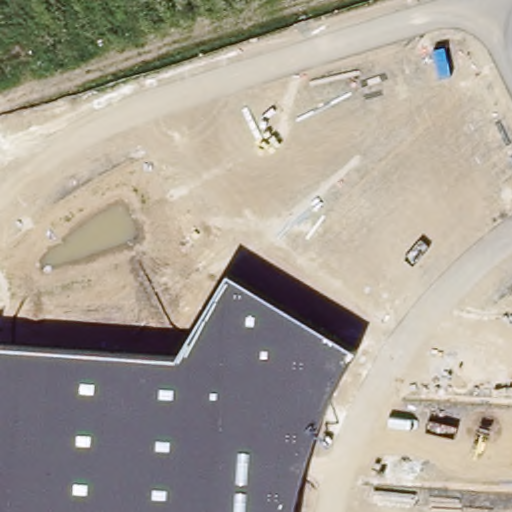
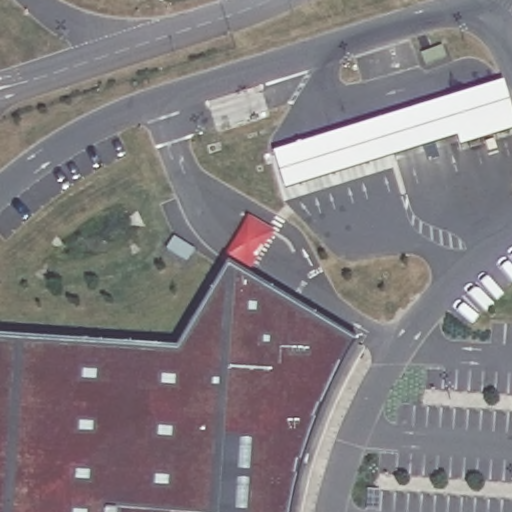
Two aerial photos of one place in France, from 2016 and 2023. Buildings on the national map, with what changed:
new [(442,48),(447,59),(425,67),(421,56),(442,48)]
new [(411,109),(423,105),(425,110),(504,85),(512,111),(512,136),(461,152),(458,142),(437,149),(439,158),(427,162),(425,153),(285,194),(275,156),(412,113),(411,109)]
unchanged [(304,473),(294,512),(0,512),(0,344),(178,357),(229,271),(360,349),(327,412),(304,473)]

